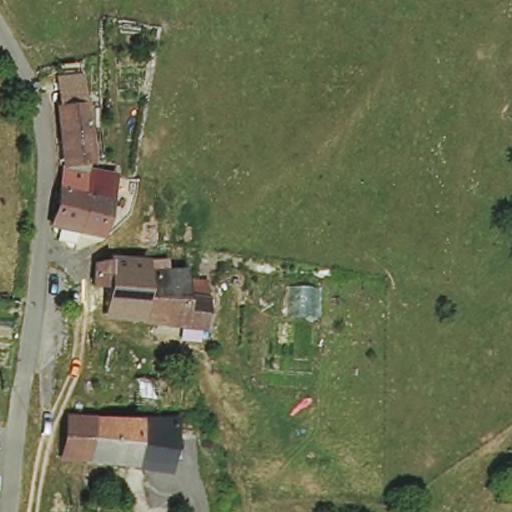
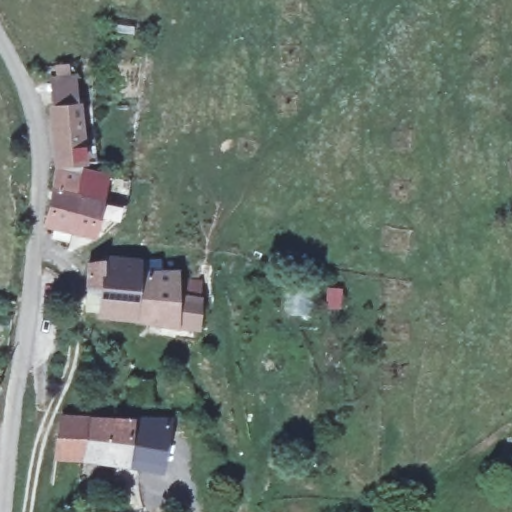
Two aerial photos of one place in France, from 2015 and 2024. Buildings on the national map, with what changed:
unchanged [(45,92),(73,87),(79,124),(51,129),(45,92)]
unchanged [(83,158),(55,165),(51,129),(79,124),(83,158)]
unchanged [(79,169),(73,228),(48,224),(55,165),(79,169)]
unchanged [(79,169),(101,173),(106,174),(94,232),(73,228),(79,169)]
unchanged [(105,312),(105,291),(93,290),(92,264),(103,258),(143,262),(143,272),(176,271),(181,271),(183,281),(202,279),(199,322),(113,317),(105,312)]
unchanged [(156,355),(157,386),(139,387),(138,355),(156,355)]
unchanged [(157,462),(76,454),(54,450),(58,414),(81,414),(162,417),(157,462)]

